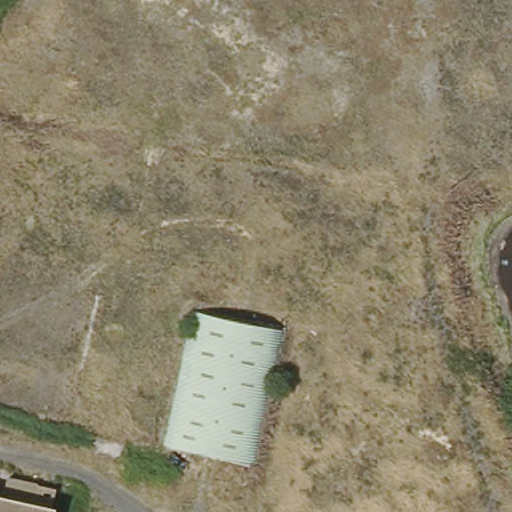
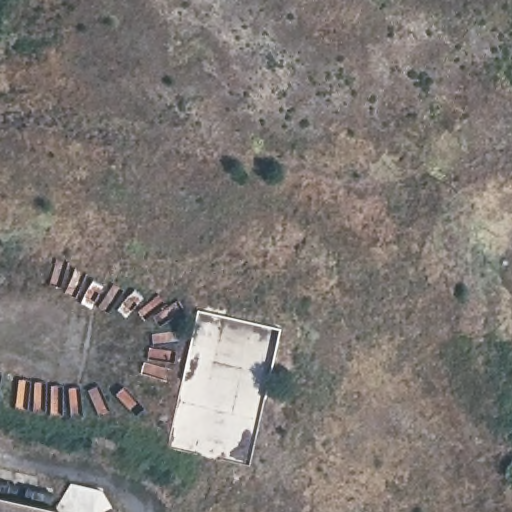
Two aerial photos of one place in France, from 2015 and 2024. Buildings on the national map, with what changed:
demolished [(280,327),(252,470),(177,449),(211,313),(280,327)]
unchanged [(66,492),(62,510),(65,511),(65,512),(0,512),(0,494),(12,497),(17,479),(66,492)]

